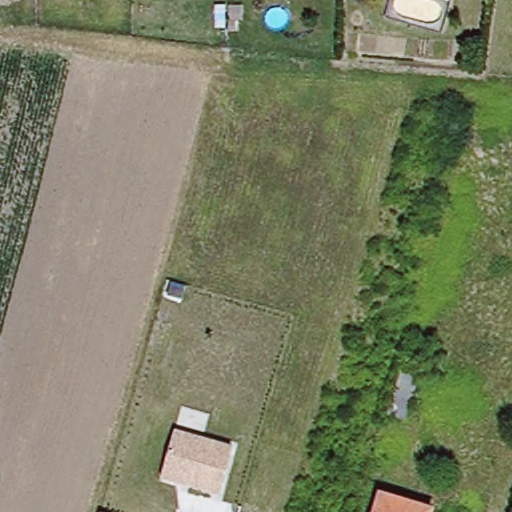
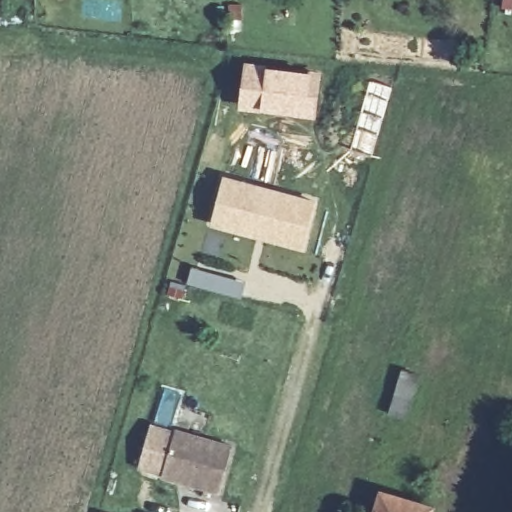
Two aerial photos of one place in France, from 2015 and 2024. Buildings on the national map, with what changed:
new [(242,60),(321,71),(315,118),(235,107),(242,60)]
new [(368,80),(391,87),(372,154),(349,147),(368,80)]
new [(222,179),(309,204),(296,248),(261,239),(209,223),(213,208),(222,179)]
new [(241,298),(212,289),(193,284),(187,282),(192,266),(198,268),(217,273),(246,282),(241,298)]
unchanged [(388,413),(389,409),(400,371),(419,377),(407,415),(406,419),(388,413)]
unchanged [(233,444),(218,493),(161,477),(176,427),(233,444)]
unchanged [(430,512),(375,512),(381,492),(431,508),(430,512)]

